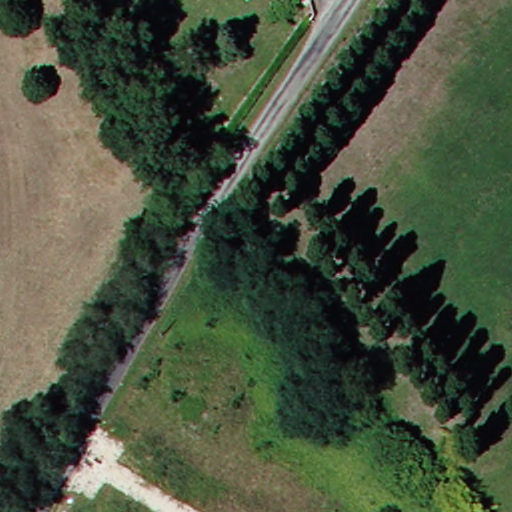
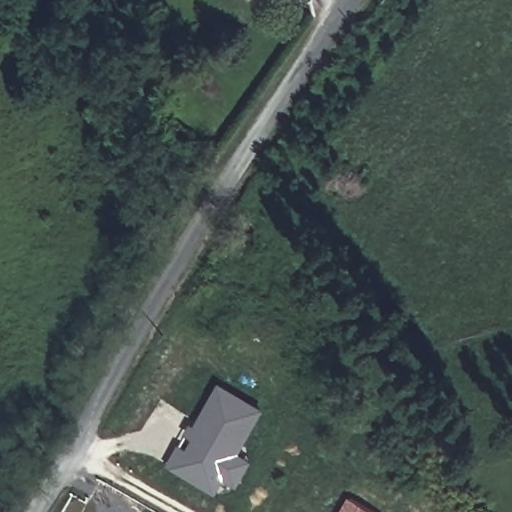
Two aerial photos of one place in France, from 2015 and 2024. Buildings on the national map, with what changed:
new [(266,408),(239,454),(250,461),(237,485),(225,478),(216,492),(168,462),(179,444),(187,448),(193,437),(185,433),(190,424),(193,426),(217,382),(266,408)]
new [(373,512),(340,512),(348,498),(373,512)]

